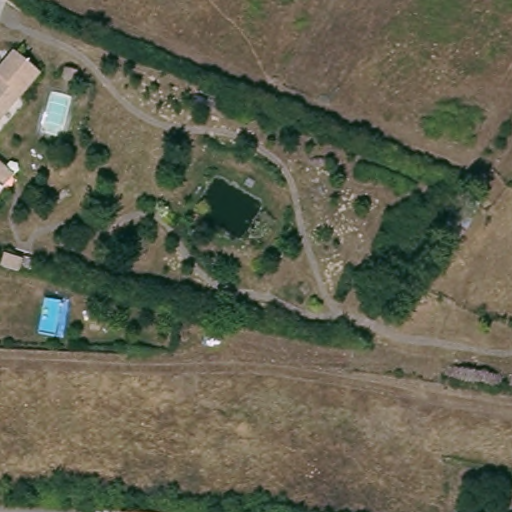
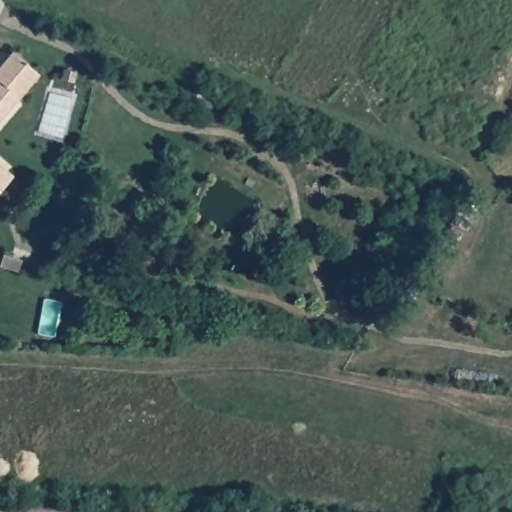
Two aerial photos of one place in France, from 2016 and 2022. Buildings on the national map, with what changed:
unchanged [(0,83),(0,65),(15,48),(42,73),(16,99),(3,86),(0,83)]
unchanged [(3,86),(16,99),(20,103),(0,122),(0,89),(3,86)]
unchanged [(5,172),(0,178),(0,166),(5,172)]
unchanged [(167,510),(172,511),(178,512),(122,512),(122,508),(167,510)]

